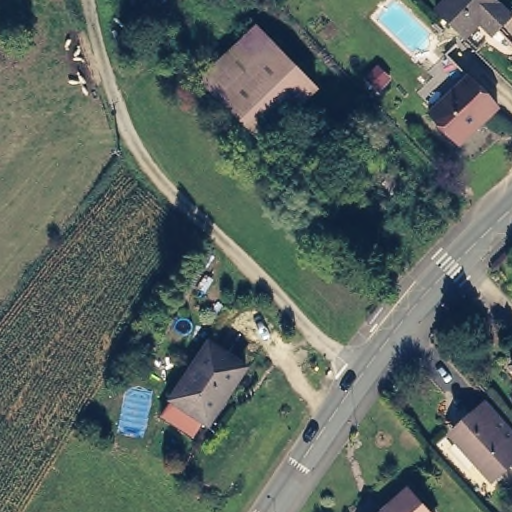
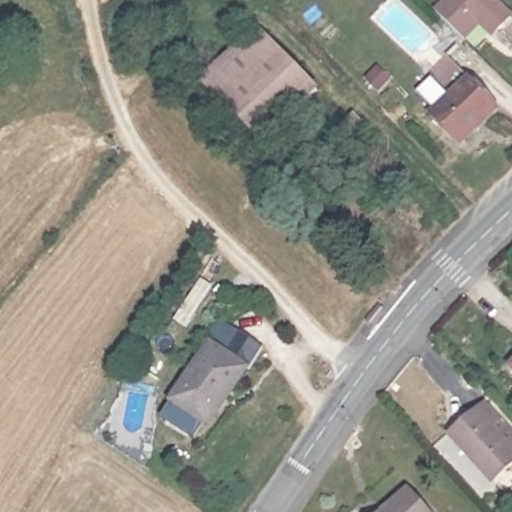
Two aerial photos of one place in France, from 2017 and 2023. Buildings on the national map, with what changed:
unchanged [(462,29),(458,32),(431,7),(436,2),(437,0),(498,0),(507,9),(491,25),(485,31),(473,19),(462,29)]
unchanged [(318,87),(263,142),(201,80),(256,27),(318,87)]
unchanged [(23,51),(0,67),(0,47),(13,37),(23,51)]
unchanged [(379,90),(366,78),(376,67),(389,79),(379,90)]
unchanged [(489,120),(488,119),(462,142),(435,114),(473,77),(502,107),(489,120)]
unchanged [(361,115),(379,132),(334,170),(311,150),(361,115)]
unchanged [(202,432),(171,411),(203,364),(204,365),(221,341),(254,362),(233,393),(229,391),(202,432)]
unchanged [(512,443),(512,463),(491,482),(451,440),(464,428),(459,423),(466,418),(469,422),(482,410),(512,443)]
unchanged [(406,491),(426,512),(382,512),(406,491)]

